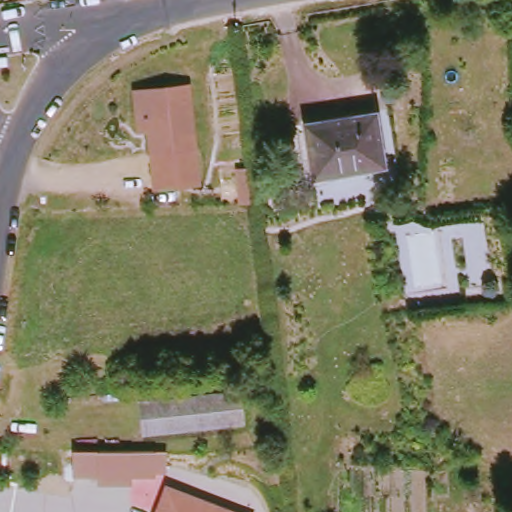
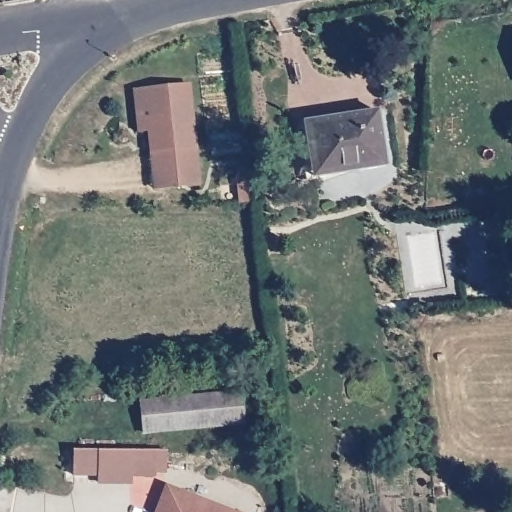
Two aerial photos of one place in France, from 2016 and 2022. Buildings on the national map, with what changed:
unchanged [(154,190),(152,173),(149,131),(139,132),(135,91),(150,89),(190,86),(198,169),(199,186),(154,190)]
unchanged [(304,127),(378,116),(385,172),(361,177),(360,167),(310,174),(304,127)]
unchanged [(140,401),(242,396),(244,426),(242,427),(142,432),(140,401)]
unchanged [(152,453),(151,477),(128,477),(127,485),(97,483),(98,451),(152,453)]
unchanged [(211,512),(155,512),(164,492),(211,512)]

